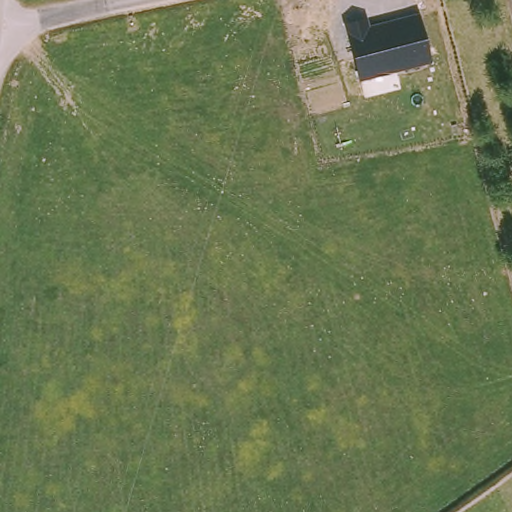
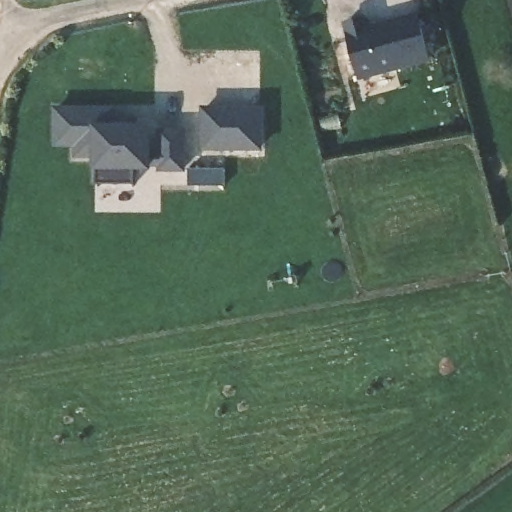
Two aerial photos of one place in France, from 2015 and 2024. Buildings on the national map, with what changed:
unchanged [(359,77),(347,32),(373,26),(423,13),(433,65),(362,81),(359,77)]
new [(158,172),(158,169),(152,169),(132,168),(133,184),(96,185),(96,169),(92,168),(92,159),(75,159),(75,147),(53,147),(53,107),(117,106),(117,119),(139,119),(139,123),(152,123),(158,124),(158,129),(186,129),(187,171),(158,172)]

